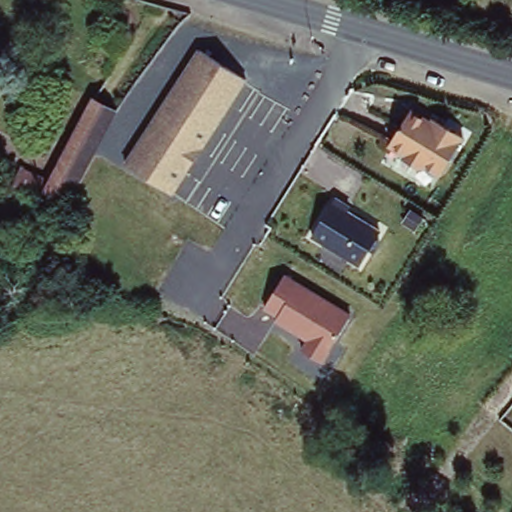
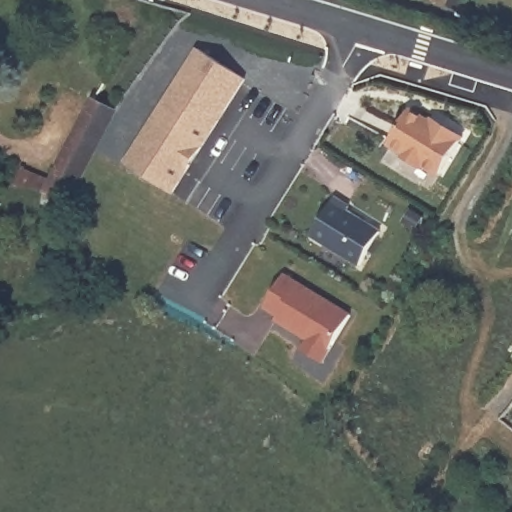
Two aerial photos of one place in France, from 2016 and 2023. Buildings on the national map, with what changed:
unchanged [(201,45),(249,81),(176,195),(124,164),(201,45)]
unchanged [(21,164),(52,172),(93,95),(115,108),(69,195),(44,189),(11,182),(21,164)]
unchanged [(468,139),(443,172),(393,143),(416,109),(468,139)]
unchanged [(340,201),(341,200),(387,229),(367,259),(317,231),(340,201)]
unchanged [(352,309),(322,358),(308,352),(315,342),(279,322),(282,317),(266,308),(288,274),(352,309)]

